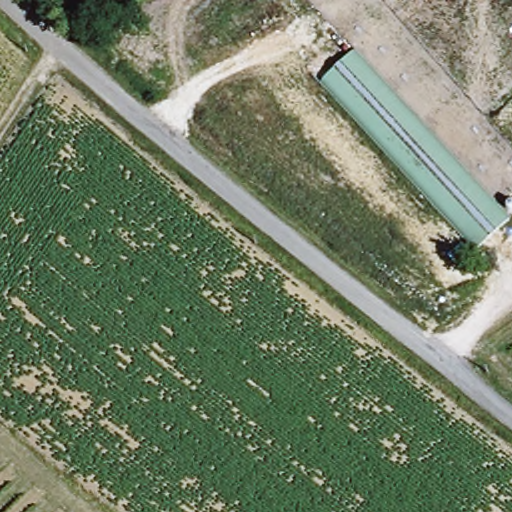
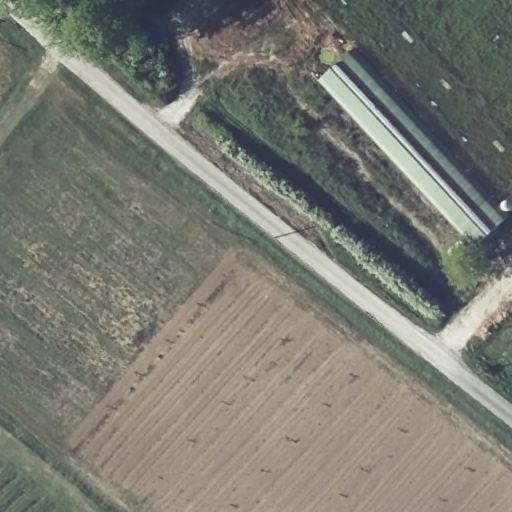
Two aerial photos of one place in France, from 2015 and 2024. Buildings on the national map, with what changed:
unchanged [(501,218),(467,249),(310,83),(343,51),(501,218)]

